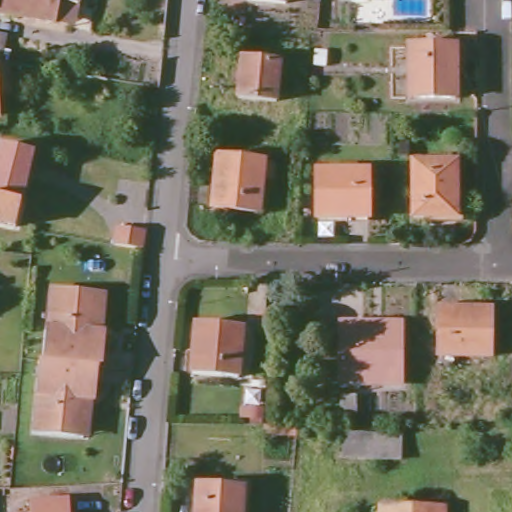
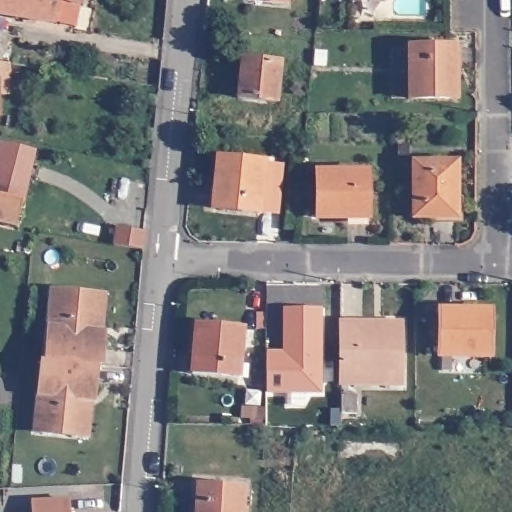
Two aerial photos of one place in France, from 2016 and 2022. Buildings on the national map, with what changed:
unchanged [(58,24),(0,14),(0,0),(81,0),(80,6),(76,27),(58,24)]
unchanged [(282,4),(244,1),(244,0),(282,0),(282,4)]
unchanged [(6,37),(3,58),(0,57),(0,35),(6,37)]
unchanged [(456,47),(457,97),(411,98),(411,49),(456,47)]
unchanged [(281,63),(277,101),(239,97),(243,59),(281,63)]
unchanged [(10,64),(11,95),(0,96),(0,61),(10,64)]
unchanged [(3,146),(33,153),(18,230),(0,225),(0,162),(3,146)]
unchanged [(265,163),(260,213),(214,208),(220,157),(265,163)]
new [(265,163),(285,165),(280,215),(260,213),(265,163)]
unchanged [(457,163),(457,217),(415,218),(415,163),(457,163)]
unchanged [(370,172),(369,217),(319,218),(319,171),(370,172)]
unchanged [(117,244),(120,227),(147,230),(144,248),(117,244)]
unchanged [(95,292),(106,293),(103,330),(100,366),(95,366),(47,361),(54,289),(95,292)]
new [(266,390),(268,353),(282,355),(285,301),(322,307),(321,390),(266,390)]
unchanged [(490,358),(439,357),(440,311),(490,312),(490,358)]
unchanged [(341,330),(380,330),(380,324),(401,325),(400,386),(340,386),(341,330)]
unchanged [(242,328),(238,379),(191,376),(195,325),(242,328)]
unchanged [(77,436),(37,432),(42,360),(47,361),(95,366),(91,402),(87,437),(77,436)]
unchanged [(306,427),(306,436),(297,436),(297,438),(266,437),(266,427),(298,427),(306,427)]
unchanged [(400,461),(370,461),(342,460),(343,434),(370,435),(400,435),(400,461)]
unchanged [(243,512),(198,512),(198,487),(245,489),(243,512)]
unchanged [(71,501),(71,512),(33,512),(32,502),(71,501)]
unchanged [(438,507),(438,512),(376,512),(376,507),(438,507)]

